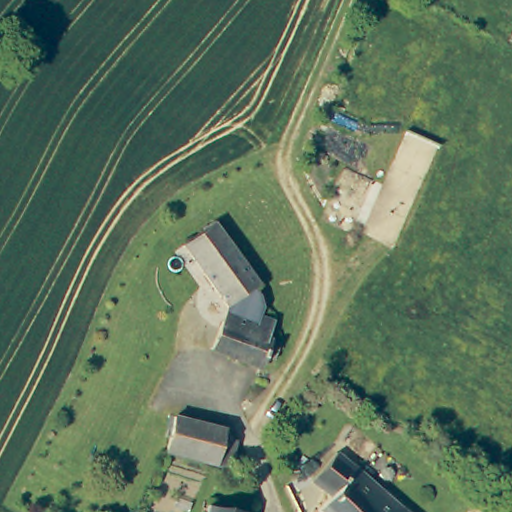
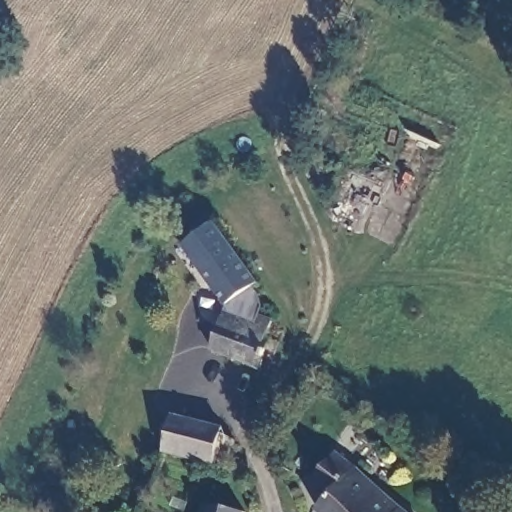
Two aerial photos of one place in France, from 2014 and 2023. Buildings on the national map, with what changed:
unchanged [(257,311),(271,316),(265,333),(278,338),(273,354),(263,351),(259,364),(209,347),(225,302),(180,242),(210,220),(255,280),(251,282),(257,290),(261,302),(257,311)]
unchanged [(217,426),(215,433),(233,436),(227,464),(197,463),(159,453),(167,416),(217,426)]
unchanged [(359,512),(316,512),(328,497),(310,481),(334,451),(355,468),(381,488),(359,512)]
unchanged [(410,512),(359,512),(381,488),(410,512)]
unchanged [(206,502),(251,512),(204,512),(206,502)]

